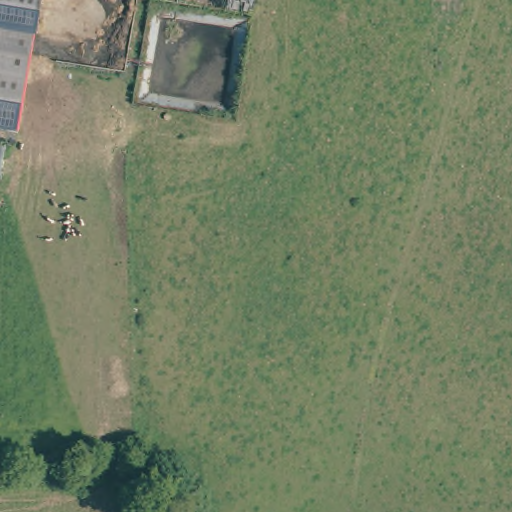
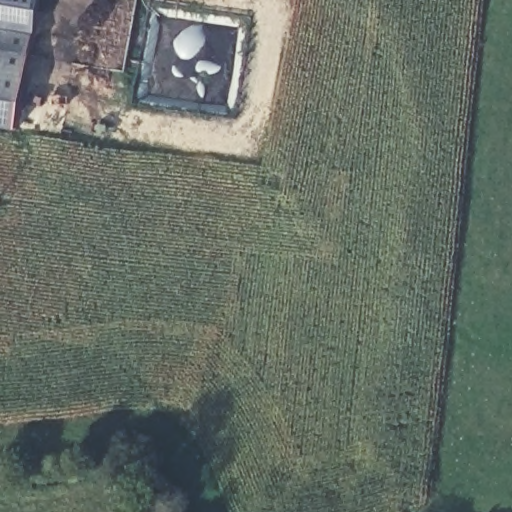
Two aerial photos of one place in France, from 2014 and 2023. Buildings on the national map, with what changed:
unchanged [(40,31),(0,23),(0,0),(46,0),(40,31)]
unchanged [(20,136),(0,132),(0,30),(39,37),(20,136)]

